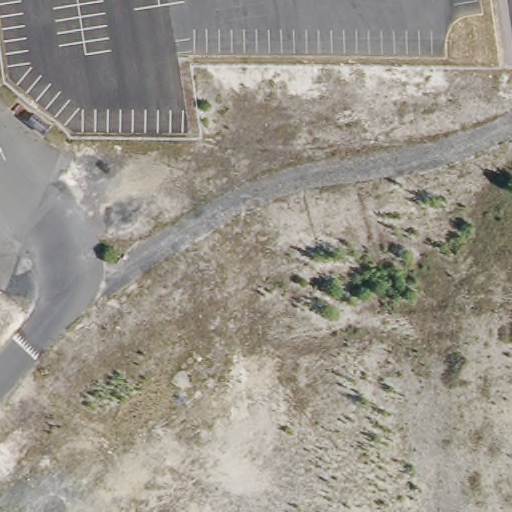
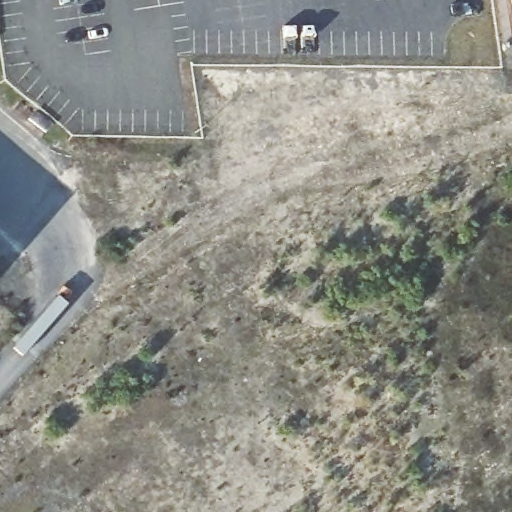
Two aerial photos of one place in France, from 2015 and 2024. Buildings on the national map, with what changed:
[]

